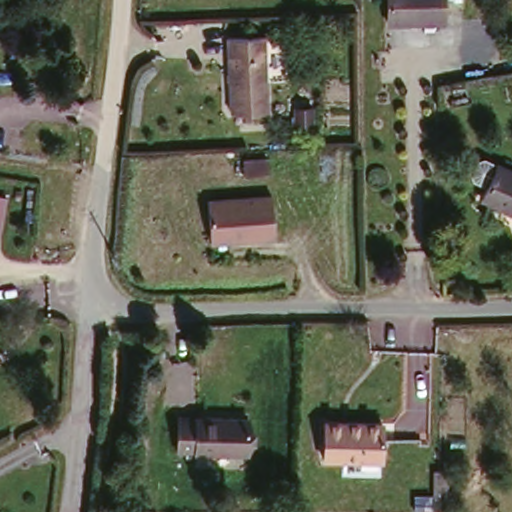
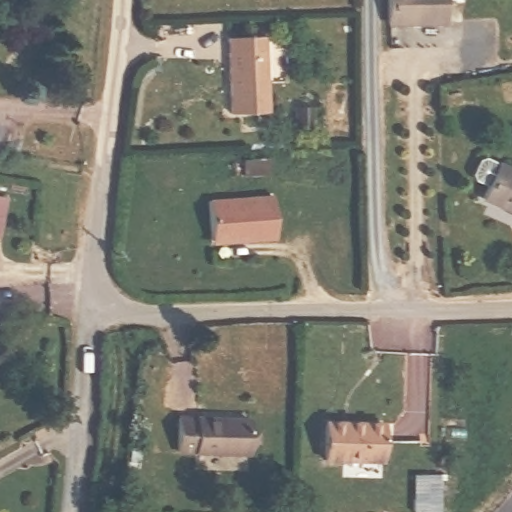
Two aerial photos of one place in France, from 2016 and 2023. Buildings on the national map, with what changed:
unchanged [(390,23),(391,0),(451,0),(451,23),(390,23)]
unchanged [(265,38),(260,111),(222,108),(227,34),(265,38)]
unchanged [(512,215),(481,201),(497,165),(512,172),(512,215)]
unchanged [(9,193),(2,232),(0,231),(0,191),(9,193)]
unchanged [(274,195),(275,235),(241,238),(240,232),(211,233),(209,198),(274,195)]
unchanged [(252,419),(250,452),(176,448),(178,415),(252,419)]
unchanged [(385,424),(382,464),(321,462),(323,420),(385,424)]

